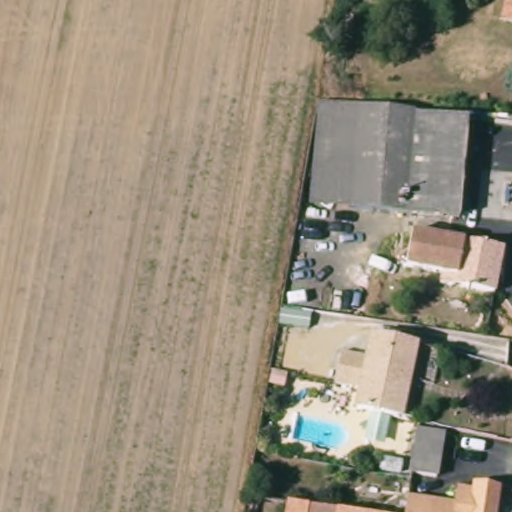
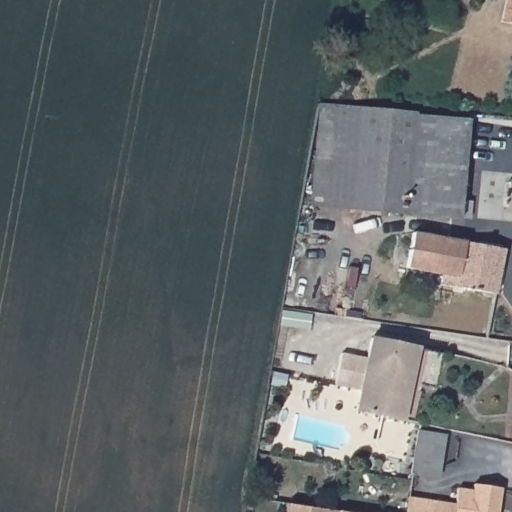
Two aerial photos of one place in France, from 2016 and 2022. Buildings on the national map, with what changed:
unchanged [(505,0),(512,0),(512,28),(500,26),(505,0)]
unchanged [(365,110),(345,207),(304,199),(323,101),(365,110)]
unchanged [(460,128),(441,226),(345,207),(365,110),(460,128)]
unchanged [(506,250),(497,293),(455,285),(457,275),(395,263),(402,230),(506,250)]
unchanged [(336,380),(341,350),(366,355),(370,336),(416,347),(400,418),(355,408),(360,385),(336,380)]
unchanged [(438,439),(427,490),(403,485),(414,433),(438,439)]
unchanged [(422,512),(397,512),(403,485),(427,490),(422,512)]
unchanged [(468,507),(472,488),(497,493),(494,512),(450,512),(452,503),(468,507)]
unchanged [(333,512),(287,512),(288,504),(333,512)]

